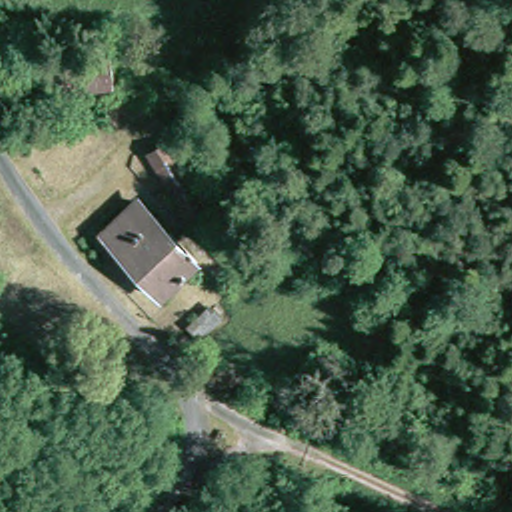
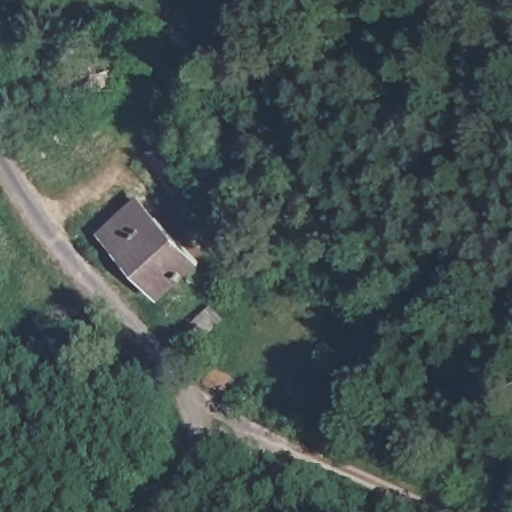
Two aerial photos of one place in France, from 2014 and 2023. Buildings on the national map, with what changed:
unchanged [(76,97),(75,86),(41,87),(41,54),(115,50),(118,92),(76,97)]
unchanged [(140,192),(205,261),(162,302),(99,231),(140,192)]
unchanged [(231,317),(287,271),(311,299),(256,346),(231,317)]
unchanged [(436,398),(367,352),(383,325),(454,372),(436,398)]
unchanged [(383,402),(449,426),(435,466),(368,440),(383,402)]
unchanged [(470,481),(482,451),(500,458),(488,489),(470,481)]

